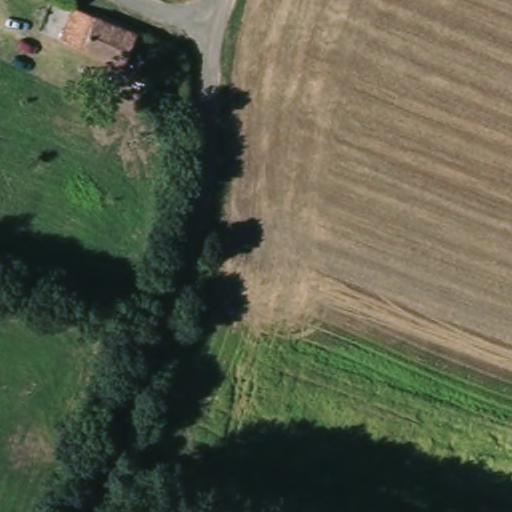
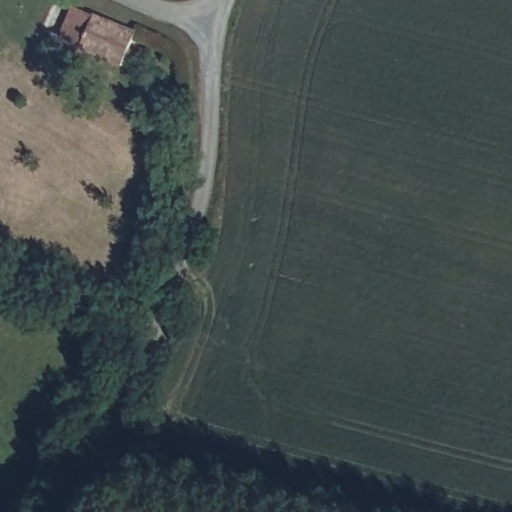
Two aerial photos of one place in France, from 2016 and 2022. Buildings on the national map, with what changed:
unchanged [(119,65),(44,33),(60,1),(134,32),(119,65)]

